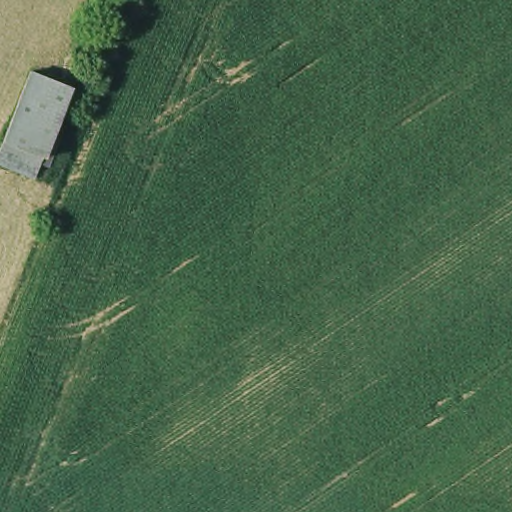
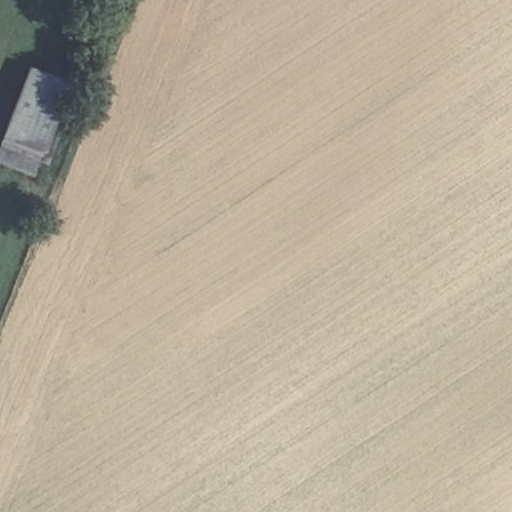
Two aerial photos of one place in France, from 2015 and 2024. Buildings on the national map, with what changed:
unchanged [(37,174),(0,159),(0,152),(32,69),(72,86),(54,133),(62,137),(52,165),(42,161),(37,174)]

